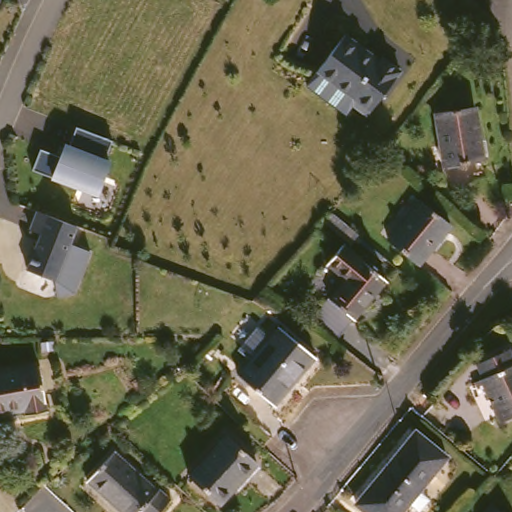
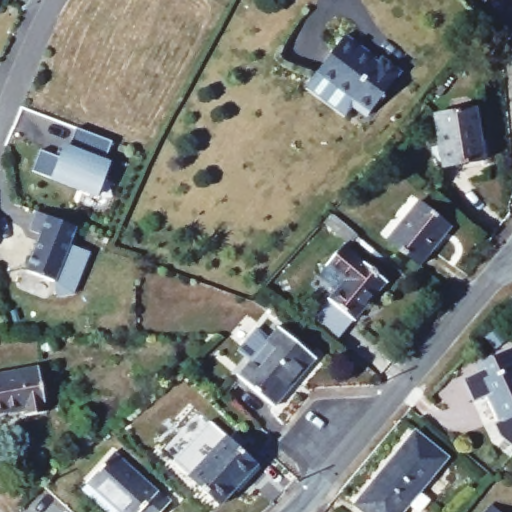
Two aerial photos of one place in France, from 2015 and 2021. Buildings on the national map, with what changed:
unchanged [(368,114),(354,103),(353,96),(318,70),(346,33),(362,46),(359,49),(378,62),(382,57),(399,71),(368,114)]
unchanged [(488,161),(447,166),(441,112),(481,107),(488,161)]
unchanged [(35,146),(54,153),(59,139),(66,141),(71,126),(109,142),(101,159),(109,162),(97,196),(27,171),(35,146)]
unchanged [(424,205),(446,224),(453,230),(421,267),(389,240),(422,203),(424,205)]
unchanged [(359,229),(353,236),(329,217),(336,209),(359,229)]
unchanged [(34,232),(24,225),(29,210),(70,226),(66,244),(85,253),(68,294),(50,290),(50,279),(23,267),(34,232)]
unchanged [(318,322),(336,299),(353,279),(334,262),(349,244),(393,279),(360,319),(341,342),(318,322)]
unchanged [(317,356),(274,405),(239,374),(280,324),(317,356)]
unchanged [(504,424),(484,383),(487,381),(481,367),(512,353),(512,354),(512,420),(504,424)]
unchanged [(25,412),(24,405),(0,410),(0,369),(38,361),(48,407),(25,412)]
unchanged [(406,512),(369,512),(359,504),(419,430),(450,455),(406,512)]
unchanged [(258,464),(220,504),(189,475),(227,435),(258,464)]
unchanged [(159,492),(161,490),(174,501),(164,512),(119,512),(87,482),(115,452),(120,457),(159,492)]
unchanged [(510,512),(488,512),(498,501),(510,512)]

